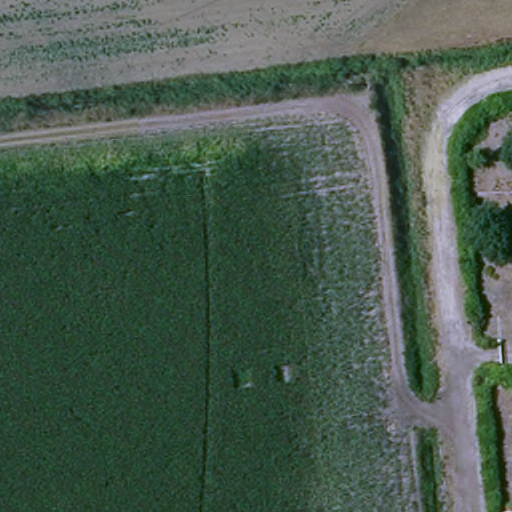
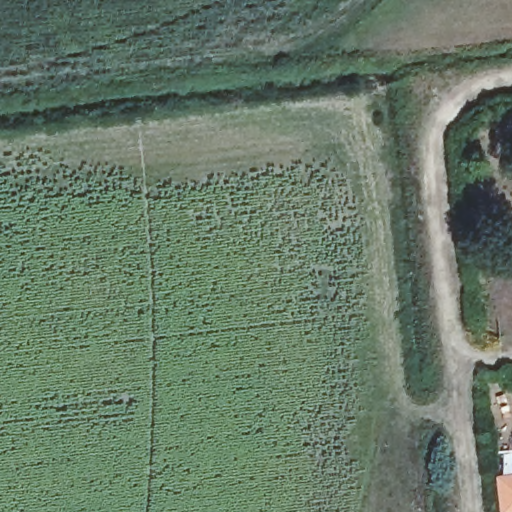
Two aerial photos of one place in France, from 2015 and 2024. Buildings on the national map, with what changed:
new [(512,473),(512,512),(503,511),(497,475),(512,473)]

